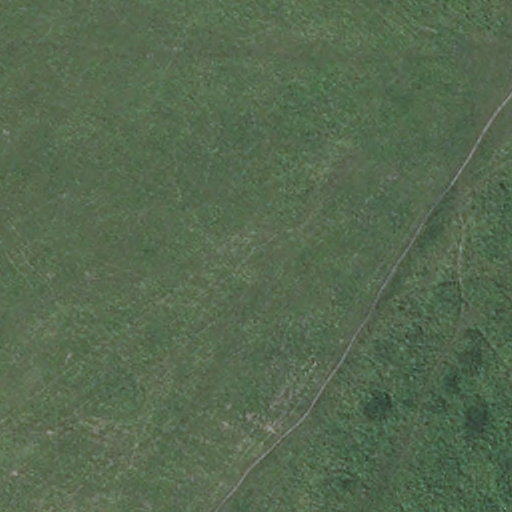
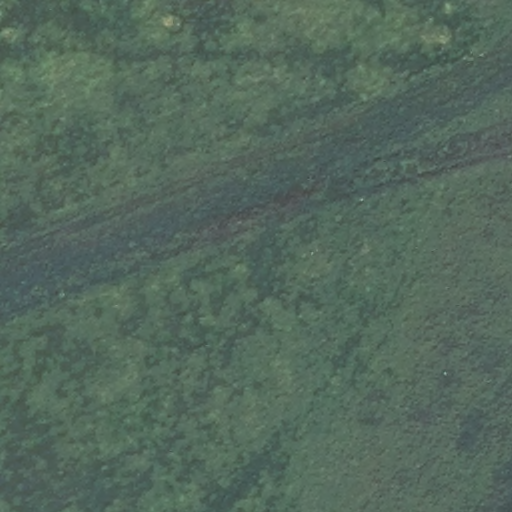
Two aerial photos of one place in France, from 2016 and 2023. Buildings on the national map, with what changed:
[]

